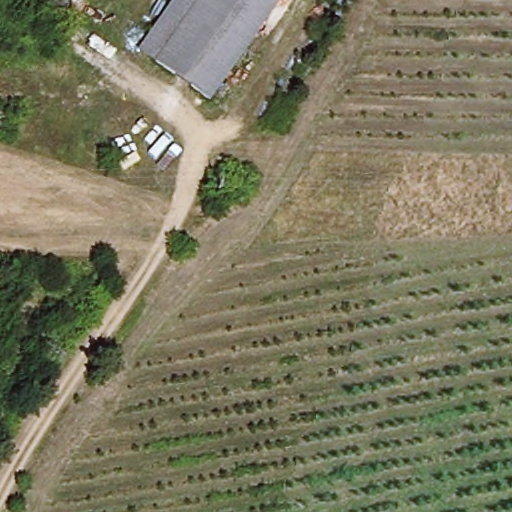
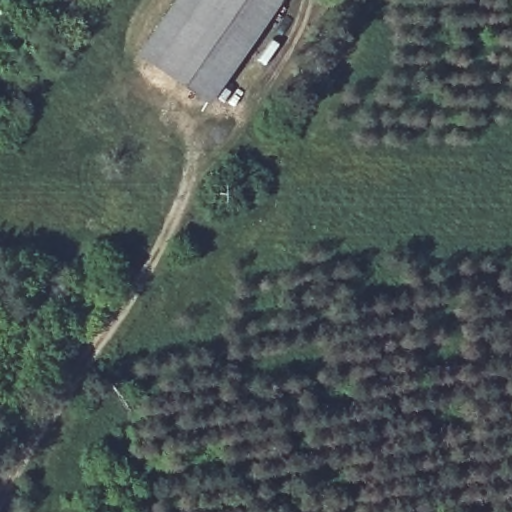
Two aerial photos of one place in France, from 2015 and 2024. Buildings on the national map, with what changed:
unchanged [(201,93),(150,58),(190,0),(267,0),(201,93)]

